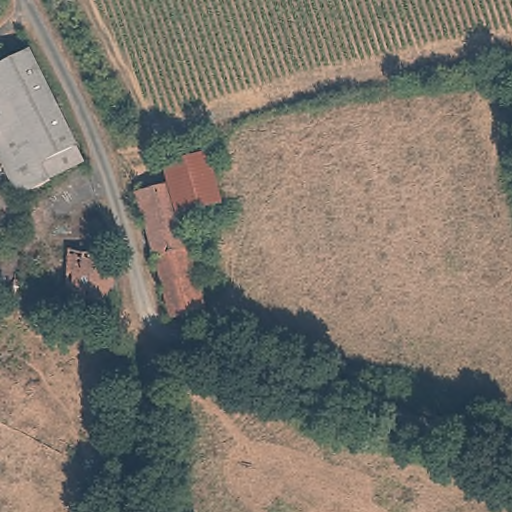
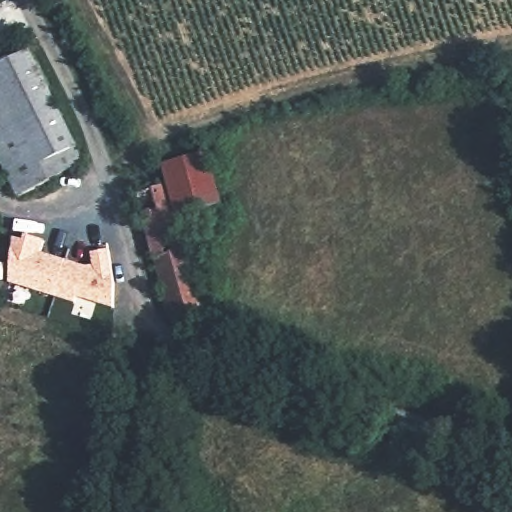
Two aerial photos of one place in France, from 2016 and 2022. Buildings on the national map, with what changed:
unchanged [(0,129),(0,61),(26,49),(53,104),(0,129)]
unchanged [(80,160),(46,175),(47,180),(14,195),(0,166),(0,129),(53,104),(80,160)]
unchanged [(164,166),(205,153),(220,204),(203,209),(179,216),(170,187),(164,166)]
unchanged [(170,187),(179,216),(206,311),(175,320),(139,196),(170,187)]
new [(115,277),(115,308),(76,297),(76,303),(8,283),(12,237),(22,240),(24,234),(44,241),(41,251),(93,265),(92,254),(110,250),(115,277)]
demolished [(66,293),(69,251),(83,256),(81,278),(114,286),(114,308),(66,293)]

